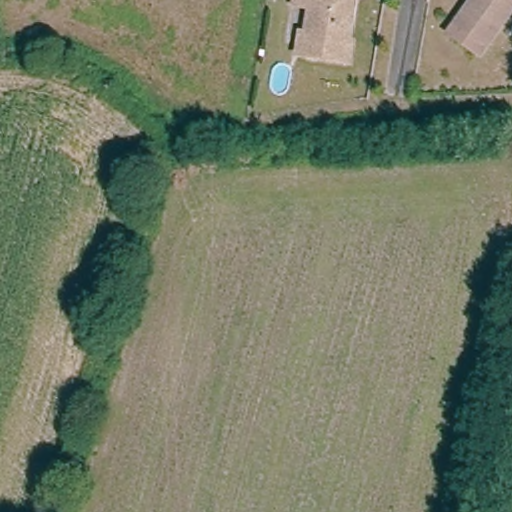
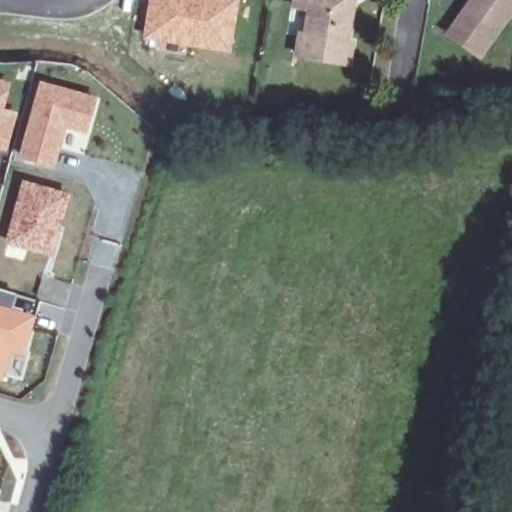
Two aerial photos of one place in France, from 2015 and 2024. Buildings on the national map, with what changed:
new [(144,40),(150,0),(239,0),(230,54),(144,40)]
unchanged [(350,39),(347,61),(295,52),(298,31),(303,32),(307,6),(291,3),(292,0),(351,0),(345,38),(350,39)]
unchanged [(445,29),(465,0),(512,0),(512,1),(476,51),(445,29)]
new [(0,110),(0,81),(7,84),(0,110)]
new [(98,96),(89,134),(65,128),(55,168),(18,158),(40,81),(98,96)]
new [(67,195),(51,253),(8,241),(26,184),(67,195)]
new [(10,308),(20,311),(19,313),(34,317),(25,351),(29,352),(22,377),(2,372),(0,377),(0,288),(14,292),(10,308)]

